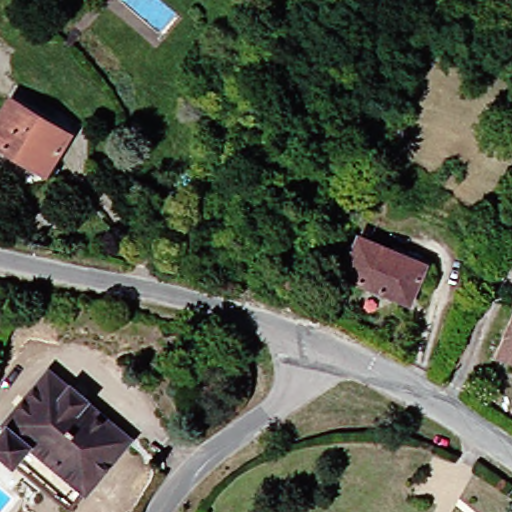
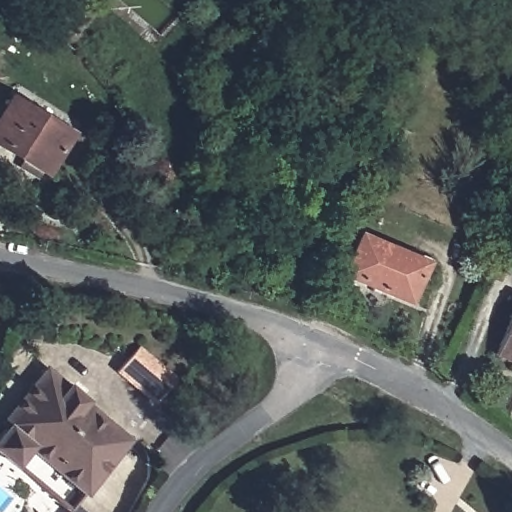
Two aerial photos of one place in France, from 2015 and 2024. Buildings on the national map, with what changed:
unchanged [(41,175),(0,152),(0,115),(4,108),(61,141),(41,175)]
unchanged [(407,305),(341,278),(357,240),(422,266),(407,305)]
unchanged [(298,291),(284,286),(291,268),(304,274),(298,291)]
unchanged [(512,335),(512,363),(502,359),(512,335)]
new [(119,373),(141,346),(179,378),(157,405),(119,373)]
unchanged [(82,498),(58,477),(33,456),(25,450),(10,469),(0,460),(0,436),(3,431),(0,428),(0,427),(45,374),(66,391),(69,389),(86,403),(81,410),(125,447),(82,498)]
new [(71,512),(69,512),(70,511),(71,512)]

